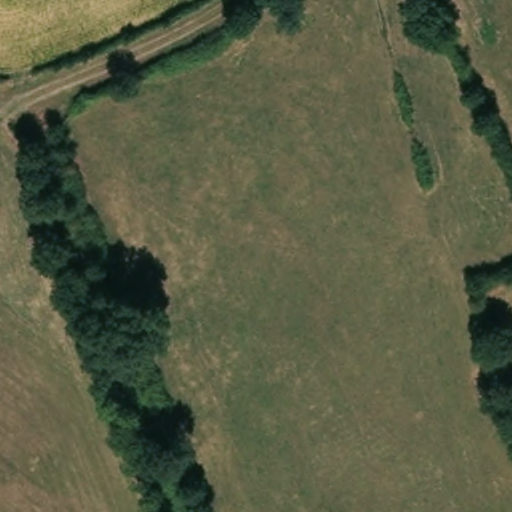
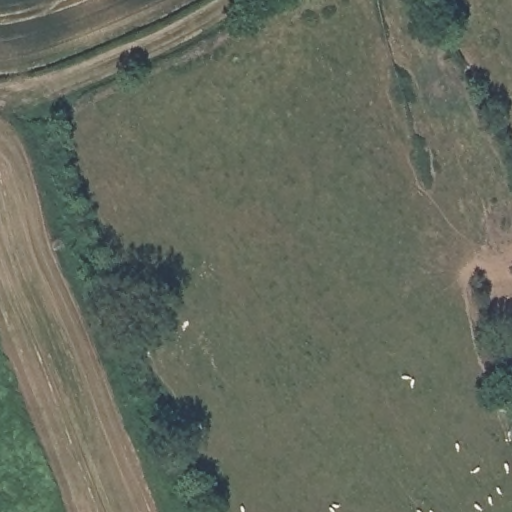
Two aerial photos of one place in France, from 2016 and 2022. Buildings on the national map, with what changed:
[]

